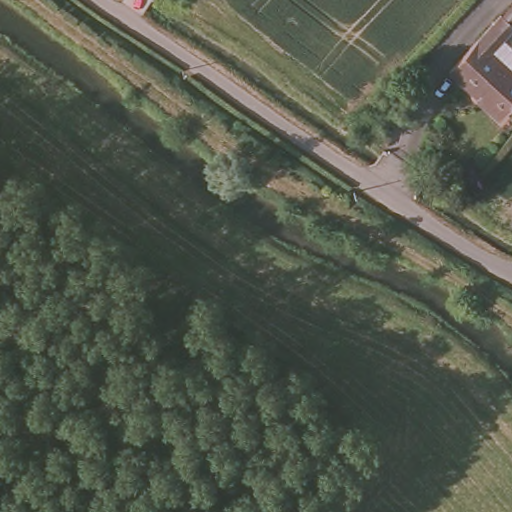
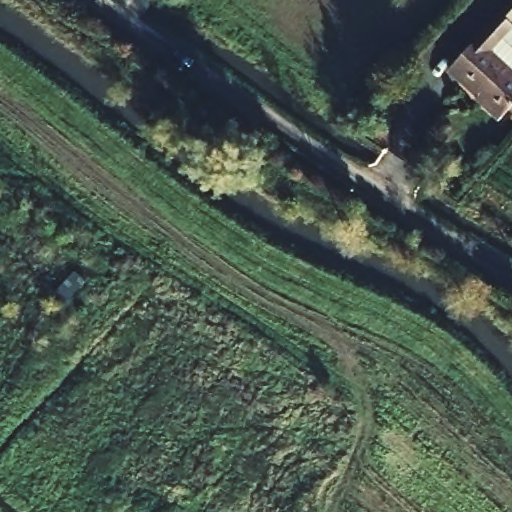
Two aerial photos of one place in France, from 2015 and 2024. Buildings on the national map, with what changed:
unchanged [(512,0),(512,20),(510,22),(494,12),(506,0),(512,0)]
unchanged [(510,22),(485,51),(512,73),(512,111),(507,106),(500,112),(445,66),(494,12),(510,22)]

